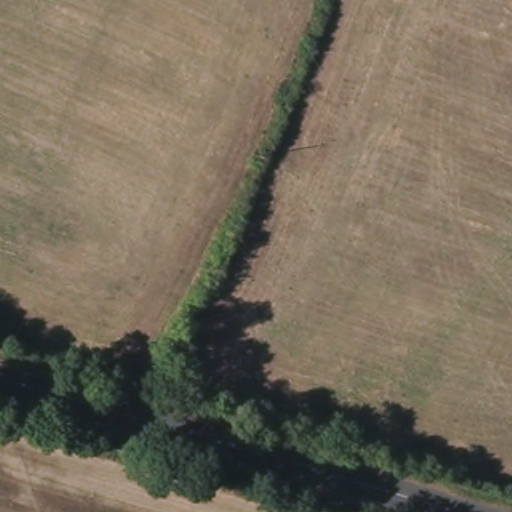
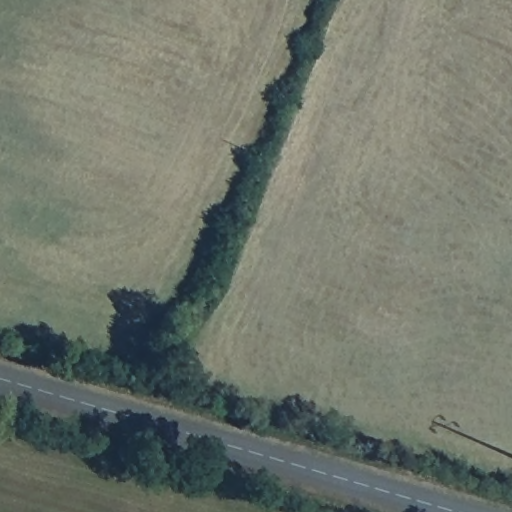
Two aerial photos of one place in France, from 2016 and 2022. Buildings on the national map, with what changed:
[]

